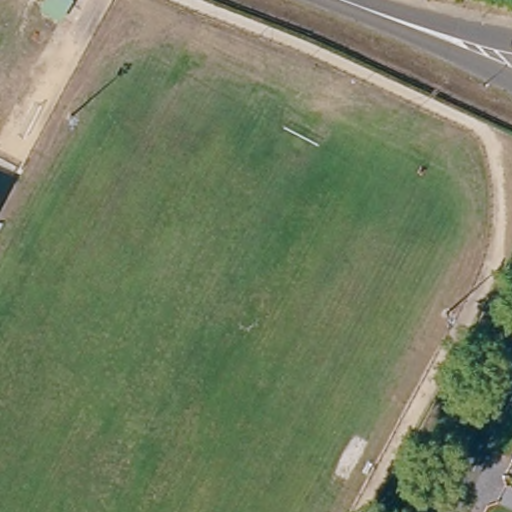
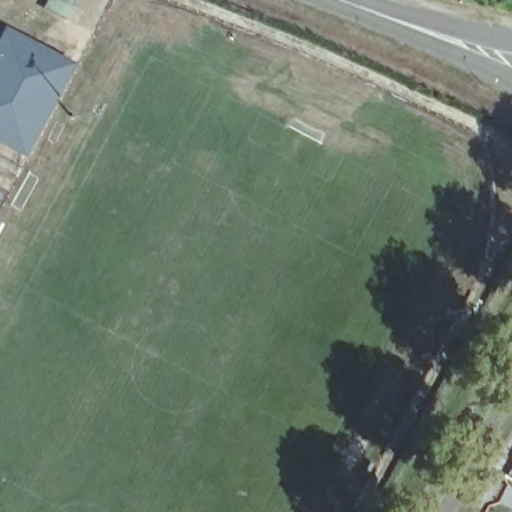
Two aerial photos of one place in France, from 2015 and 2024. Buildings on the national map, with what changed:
unchanged [(61,16),(44,6),(47,0),(70,0),(61,16)]
new [(70,62),(25,158),(0,145),(0,32),(4,24),(70,62)]

